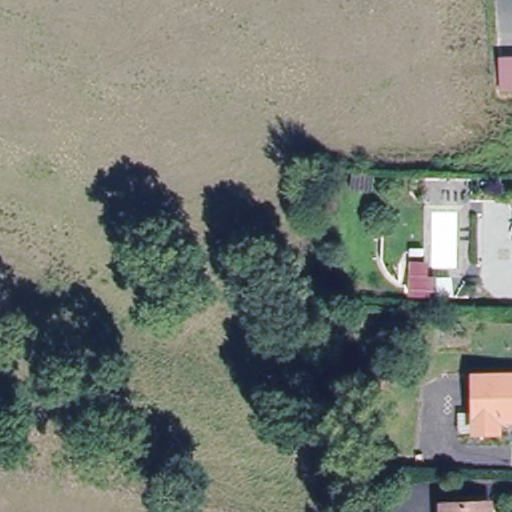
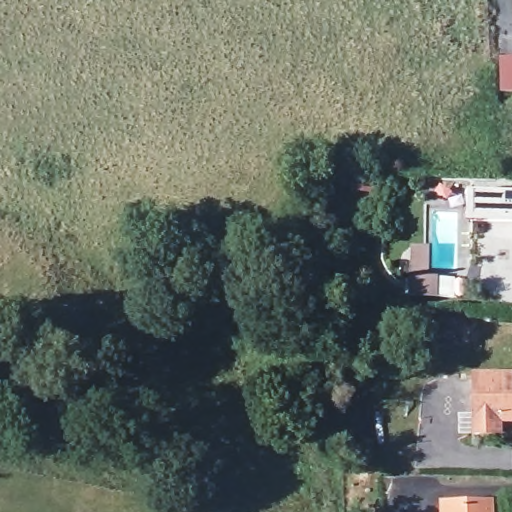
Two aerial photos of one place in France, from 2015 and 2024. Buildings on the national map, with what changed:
unchanged [(512,57),(512,92),(500,93),(499,57),(512,57)]
unchanged [(431,206),(431,179),(446,179),(446,206),(431,206)]
unchanged [(431,261),(431,277),(454,278),(454,298),(409,296),(411,259),(431,261)]
unchanged [(492,424),(492,438),(471,439),(471,382),(509,383),(510,390),(512,390),(512,424),(492,424)]
unchanged [(434,507),(482,499),(484,512),(435,512),(434,507)]

